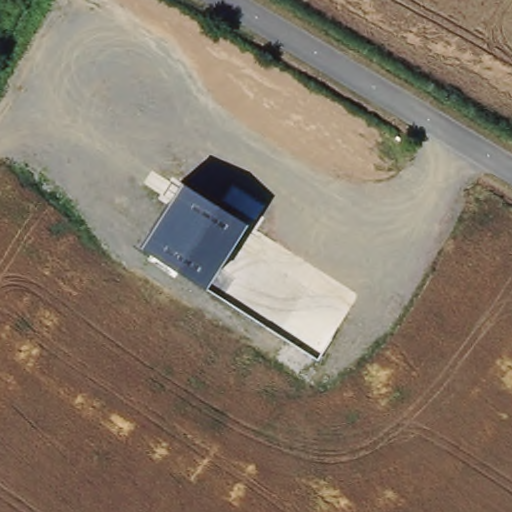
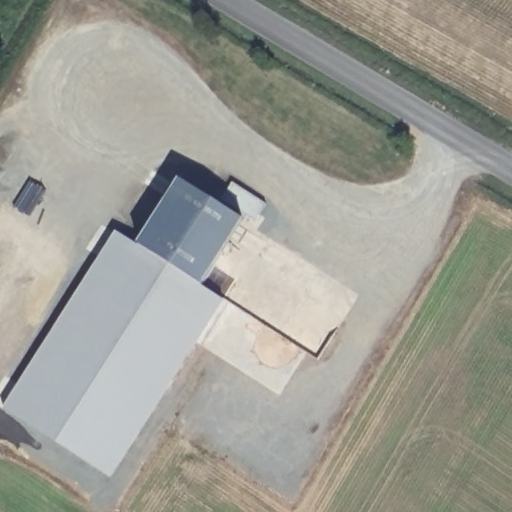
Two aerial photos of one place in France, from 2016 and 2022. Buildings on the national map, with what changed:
unchanged [(178,182),(244,222),(202,287),(138,246),(178,182)]
new [(3,408),(116,231),(138,246),(202,287),(224,301),(111,478),(3,408)]

